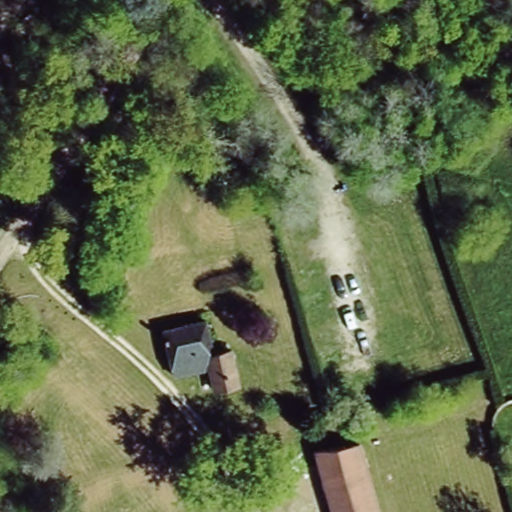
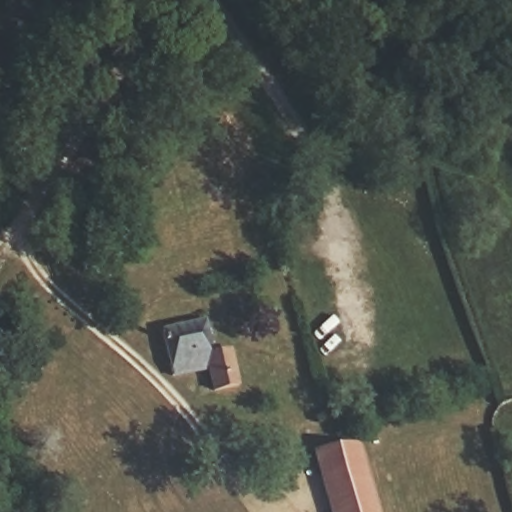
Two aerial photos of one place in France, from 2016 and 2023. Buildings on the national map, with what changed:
unchanged [(187,346),(191,364),(168,368),(158,330),(197,319),(202,340),(187,346)]
unchanged [(229,348),(239,388),(217,393),(205,355),(229,348)]
unchanged [(337,512),(319,448),(356,438),(378,512),(337,512)]

